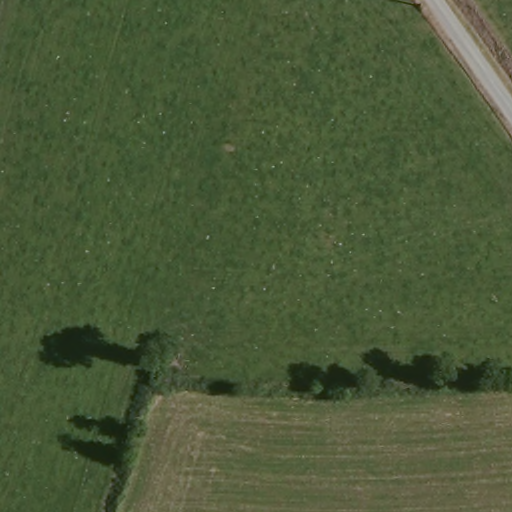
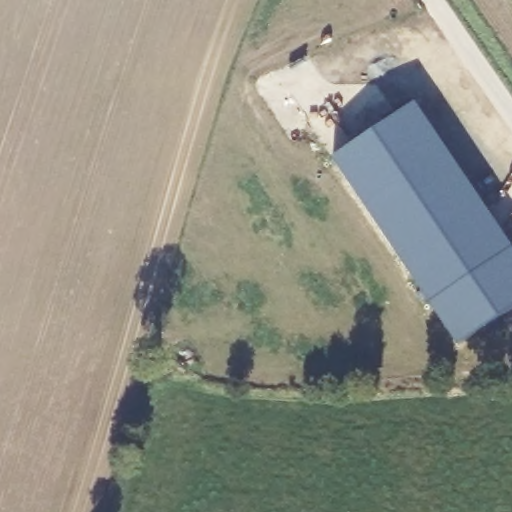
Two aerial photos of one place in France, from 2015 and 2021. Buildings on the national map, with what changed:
new [(512,247),(512,328),(474,354),(344,168),(420,115),(512,247)]

